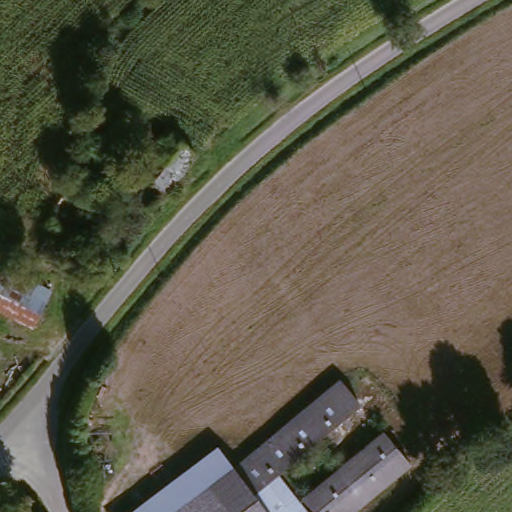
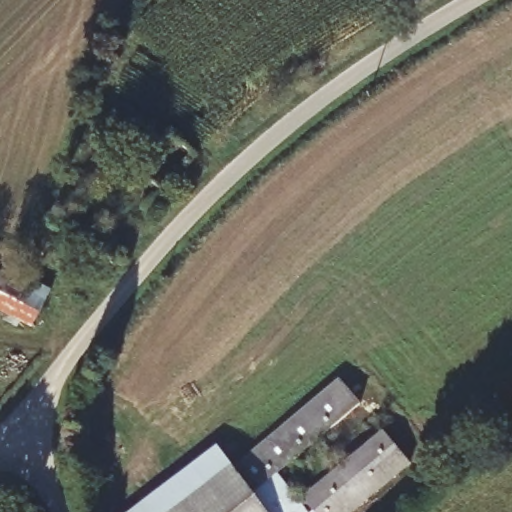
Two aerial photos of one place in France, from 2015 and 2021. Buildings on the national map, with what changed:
unchanged [(149,213),(116,185),(161,133),(197,157),(149,213)]
unchanged [(0,318),(0,265),(47,291),(27,332),(0,318)]
unchanged [(128,512),(211,447),(229,473),(337,384),(352,405),(274,472),(296,500),(383,433),(408,470),(354,512),(128,512)]

